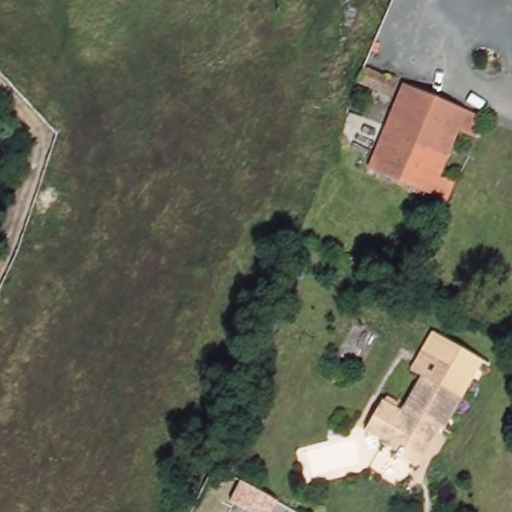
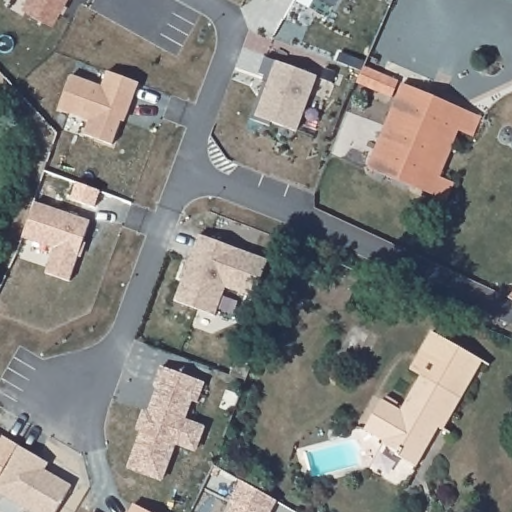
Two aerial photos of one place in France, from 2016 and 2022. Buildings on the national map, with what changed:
new [(21,9),(26,0),(66,0),(51,26),(21,9)]
new [(327,0),(336,0),(334,4),(327,0)]
new [(266,77),(259,75),(265,58),(317,77),(296,132),(271,123),(269,126),(251,120),(266,77)]
unchanged [(359,67),(392,81),(385,97),(352,83),(359,67)]
new [(71,76),(102,88),(107,72),(138,84),(127,115),(123,115),(112,146),(84,136),(89,122),(59,110),(71,76)]
unchanged [(476,117),(468,135),(455,130),(434,177),(448,184),(441,200),(362,168),(398,84),(476,117)]
new [(36,202),(91,223),(69,282),(46,274),(54,250),(24,238),(36,202)]
new [(200,235),(268,261),(254,299),(226,288),(215,317),(175,302),(200,235)]
unchanged [(443,433),(421,471),(401,460),(403,456),(387,448),(389,445),(370,435),(387,406),(406,416),(426,382),(414,376),(426,355),(438,335),(488,363),(477,383),(466,404),(448,435),(443,433)]
new [(143,431),(139,430),(145,412),(153,415),(162,390),(154,387),(161,367),(204,382),(197,402),(187,399),(180,419),(203,427),(195,450),(175,442),(162,480),(130,468),(143,431)]
new [(3,438),(19,447),(0,478),(0,443),(3,438)]
new [(34,456),(49,465),(45,470),(73,486),(58,512),(30,512),(0,494),(0,478),(19,447),(34,456)]
unchanged [(230,501),(241,481),(276,500),(271,512),(250,512),(230,501)]

